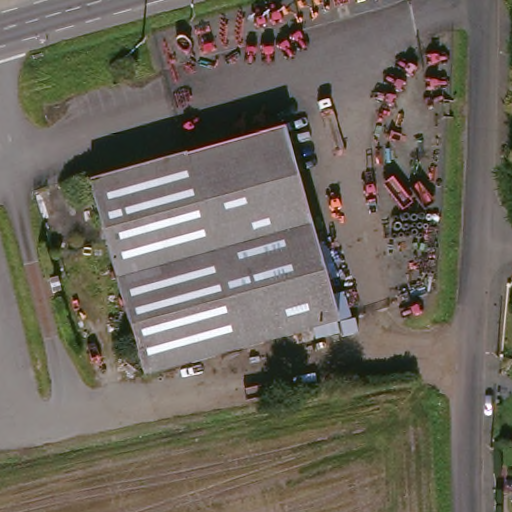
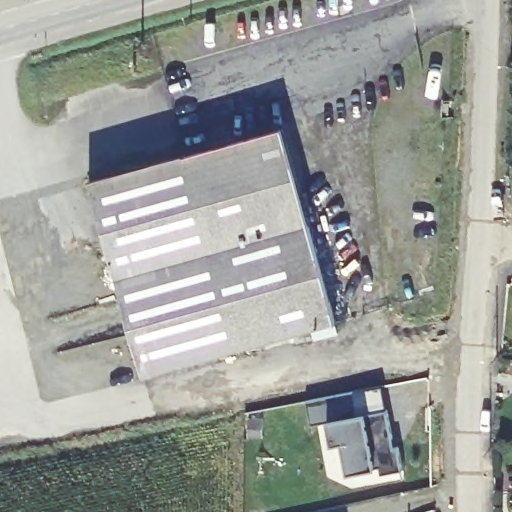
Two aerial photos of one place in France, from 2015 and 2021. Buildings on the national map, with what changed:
unchanged [(183,151),(283,123),(340,320),(238,345),(183,151)]
unchanged [(139,370),(88,179),(183,151),(238,345),(139,370)]
new [(394,448),(396,448),(401,470),(381,474),(381,466),(375,466),(376,469),(348,475),(342,443),(331,445),(326,420),(311,424),(306,399),(381,386),(394,448)]

